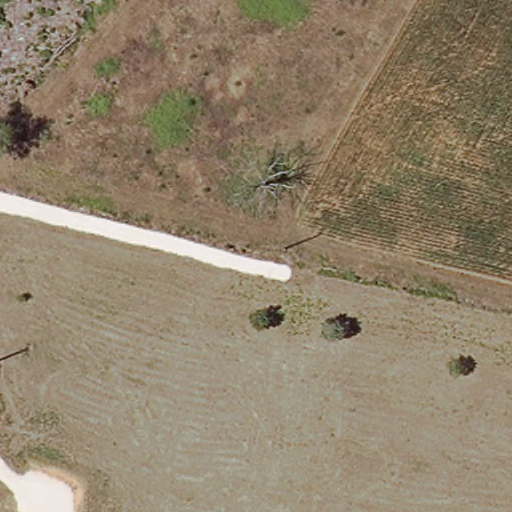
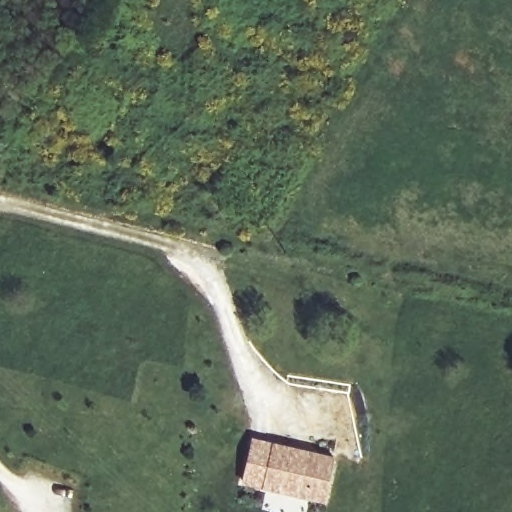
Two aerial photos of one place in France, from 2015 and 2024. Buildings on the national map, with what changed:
new [(273,442),(335,455),(325,502),(263,488),(273,442)]

